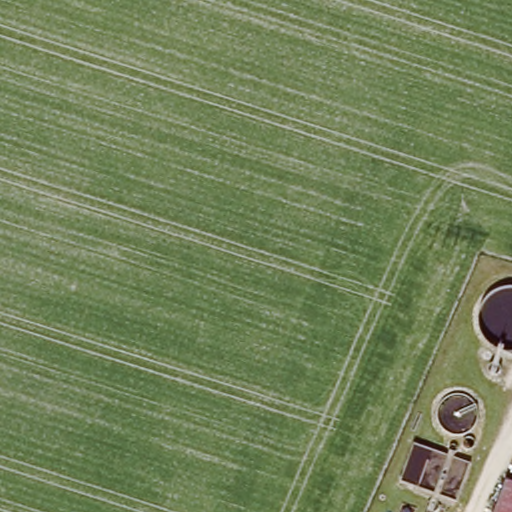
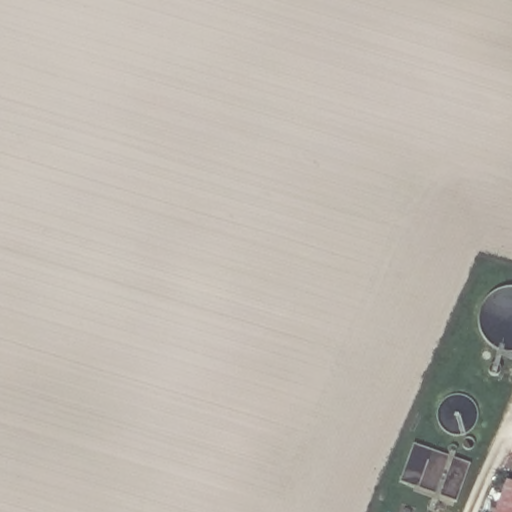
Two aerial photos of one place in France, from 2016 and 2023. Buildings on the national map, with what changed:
unchanged [(512,489),(512,512),(504,512),(512,489)]

